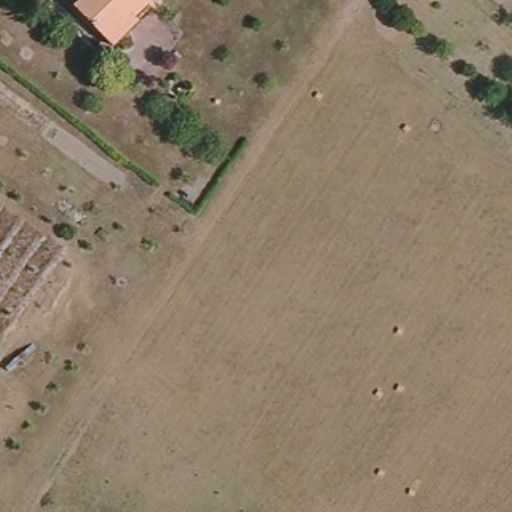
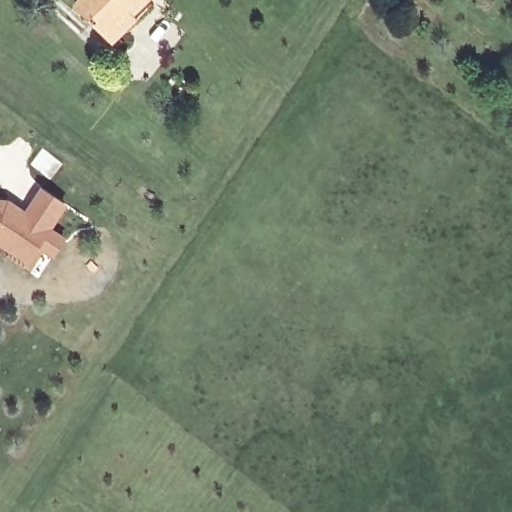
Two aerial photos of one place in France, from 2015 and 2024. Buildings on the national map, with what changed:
unchanged [(112,42),(104,32),(78,1),(79,0),(148,0),(134,13),(137,18),(112,42)]
new [(25,208),(41,186),(69,206),(53,227),(68,239),(53,259),(41,251),(30,268),(0,247),(0,197),(8,198),(25,208)]

